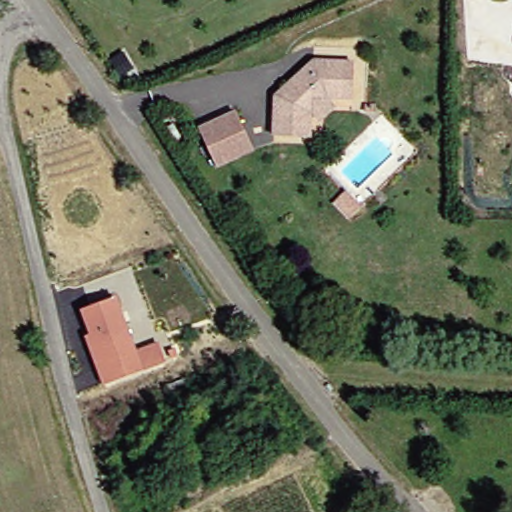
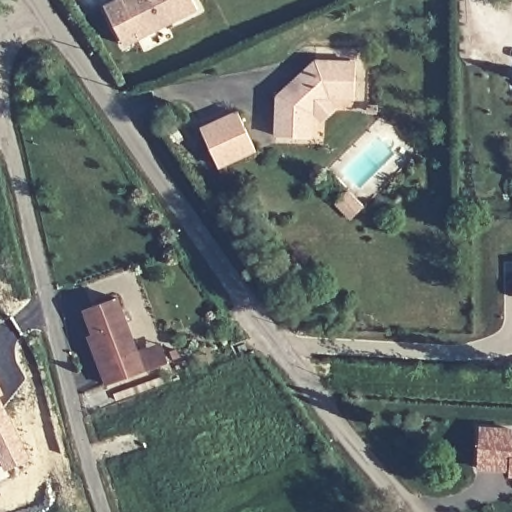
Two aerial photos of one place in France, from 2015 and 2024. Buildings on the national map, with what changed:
new [(122,46),(103,8),(119,0),(190,0),(195,11),(122,46)]
unchanged [(327,123),(318,114),(317,140),(279,139),(280,94),(320,61),(357,63),(356,98),(336,98),(345,108),(327,123)]
unchanged [(241,114),(255,153),(219,166),(204,129),(241,114)]
unchanged [(166,121),(175,135),(166,140),(157,126),(166,121)]
unchanged [(82,309),(117,297),(139,349),(160,340),(168,361),(147,371),(104,387),(84,335),(90,333),(82,309)]
new [(1,395),(31,459),(5,472),(0,461),(0,383),(5,392),(1,395)]
new [(508,475),(508,470),(476,468),(478,429),(512,430),(512,441),(512,475),(508,475)]

